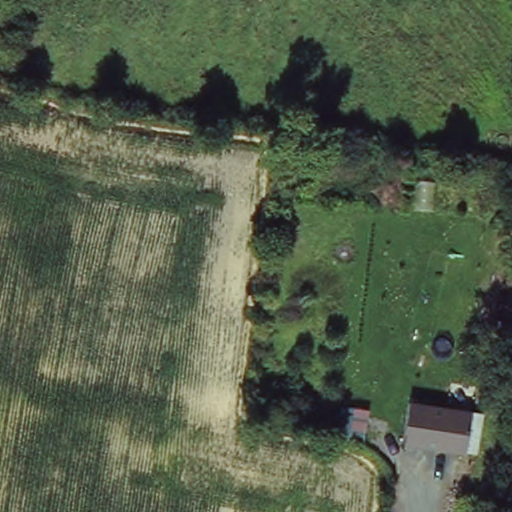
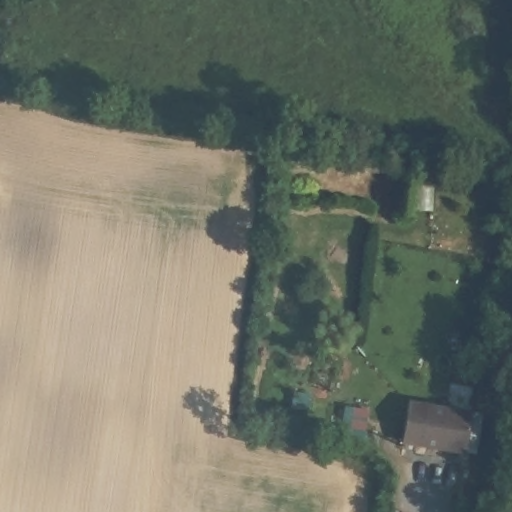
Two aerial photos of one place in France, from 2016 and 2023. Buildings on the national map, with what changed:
unchanged [(420,401),(482,409),(478,449),(415,441),(420,401)]

